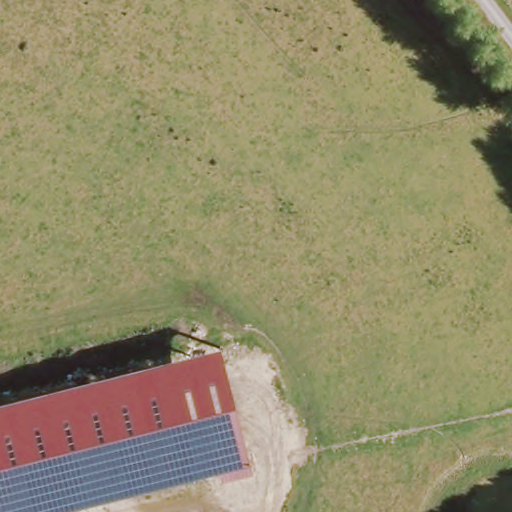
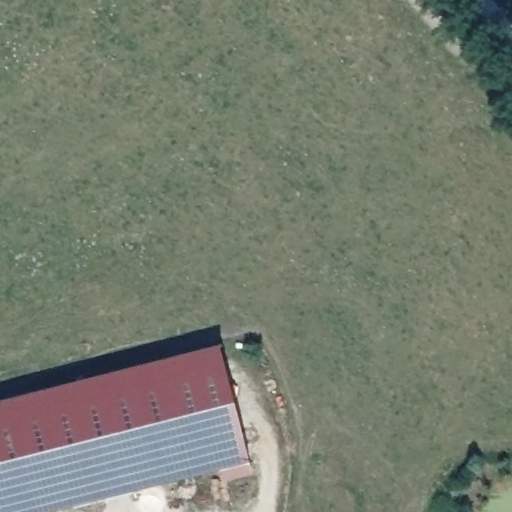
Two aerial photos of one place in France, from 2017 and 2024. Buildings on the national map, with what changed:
unchanged [(253,475),(224,482),(221,472),(59,512),(0,512),(0,403),(220,349),(251,463),(253,475)]

